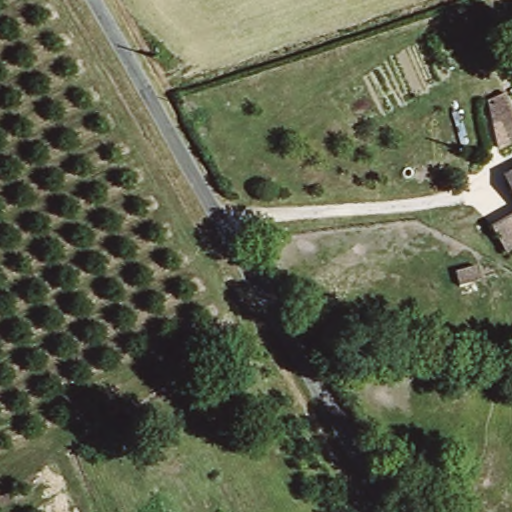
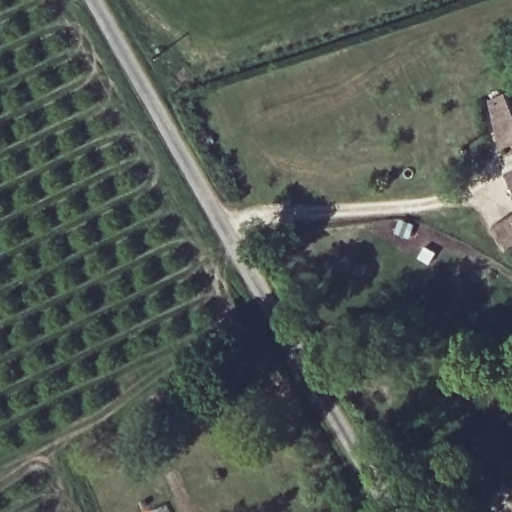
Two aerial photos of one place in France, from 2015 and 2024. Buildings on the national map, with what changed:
unchanged [(512,91),(512,143),(504,146),(498,94),(512,91)]
unchanged [(512,171),(512,176),(510,172),(512,171)]
unchanged [(512,249),(507,252),(493,223),(512,213),(512,249)]

